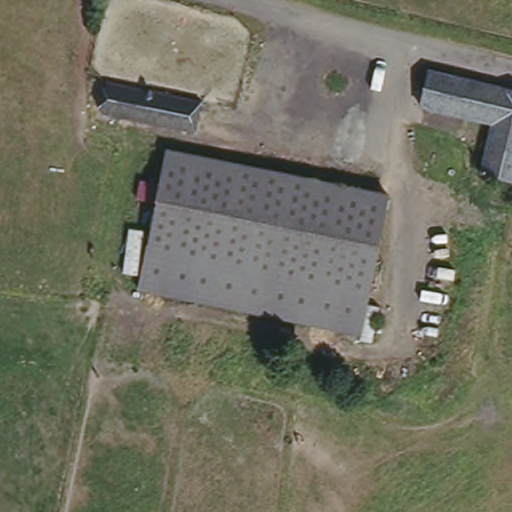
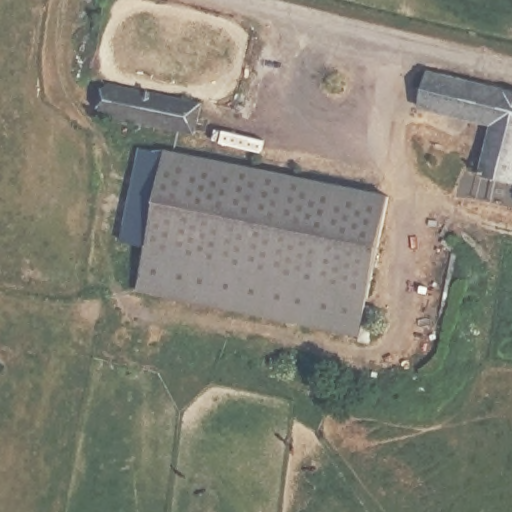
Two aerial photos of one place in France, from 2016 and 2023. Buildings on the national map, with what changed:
unchanged [(489,122),(417,104),(425,67),(512,89),(512,183),(475,174),(489,122)]
unchanged [(200,101),(192,128),(158,120),(100,108),(105,79),(196,99),(200,101)]
unchanged [(146,247),(157,202),(171,144),(388,194),(362,297),(156,249),(146,247)]
unchanged [(362,297),(352,337),(155,289),(137,285),(146,247),(156,249),(362,297)]

